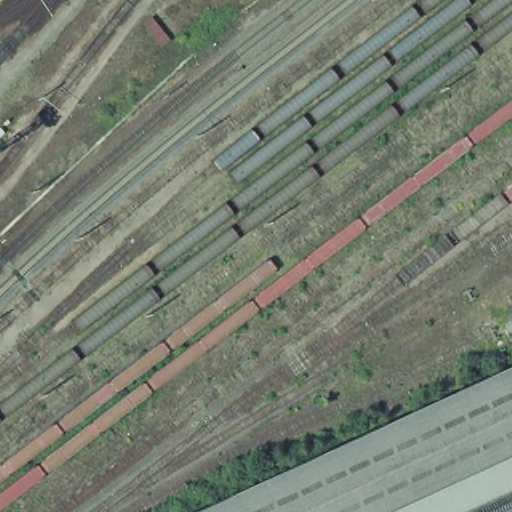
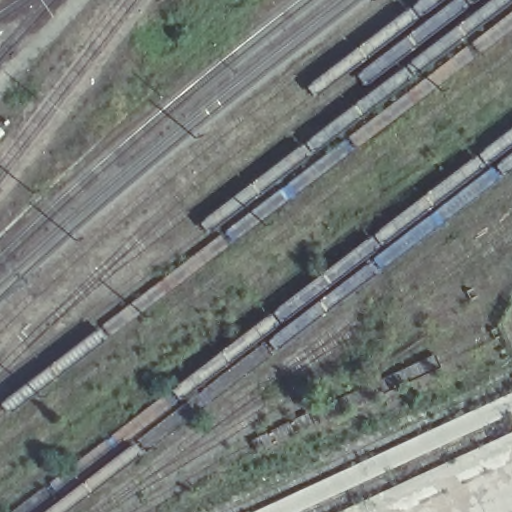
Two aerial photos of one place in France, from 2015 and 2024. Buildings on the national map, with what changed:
demolished [(512,371),(512,460),(401,512),(213,512),(512,371)]
demolished [(512,460),(512,512),(401,512),(512,460)]

